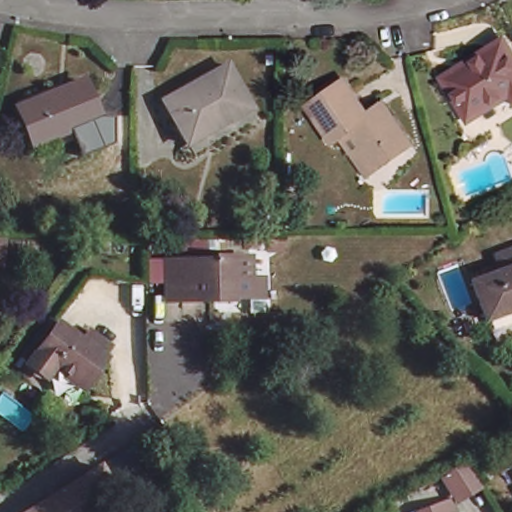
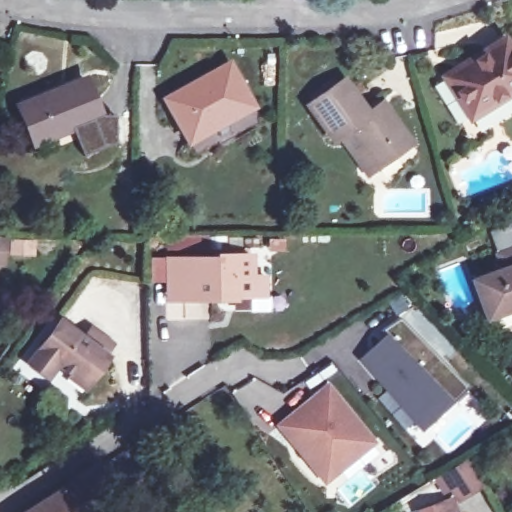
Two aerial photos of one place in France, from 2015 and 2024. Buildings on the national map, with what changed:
unchanged [(475,124),(449,83),(508,45),(512,52),(512,101),(475,124)]
unchanged [(267,107),(204,143),(180,100),(245,66),(267,107)]
unchanged [(102,118),(34,144),(20,108),(87,80),(102,118)]
unchanged [(345,138),(340,142),(314,105),(350,80),(375,115),(390,105),(418,145),(382,170),(373,176),(345,138)]
unchanged [(486,319),(472,282),(503,271),(498,256),(507,253),(512,252),(512,310),(486,319)]
unchanged [(265,298),(252,299),(215,299),(215,301),(182,301),(167,301),(168,260),(182,260),(216,260),(216,257),(252,256),(252,280),(265,280),(265,298)]
new [(414,423),(362,362),(387,339),(380,331),(405,317),(468,392),(450,407),(421,432),(414,423)]
unchanged [(57,369),(47,382),(28,368),(59,328),(85,348),(94,336),(115,352),(107,363),(85,392),(57,369)]
new [(327,382),(377,443),(323,485),(274,425),(327,382)]
unchanged [(19,512),(97,463),(137,438),(151,462),(112,487),(120,499),(99,512),(90,512),(90,511),(89,512),(19,512)]
unchanged [(487,490),(462,507),(449,485),(474,469),(487,490)]
unchanged [(461,512),(439,512),(458,504),(461,512)]

